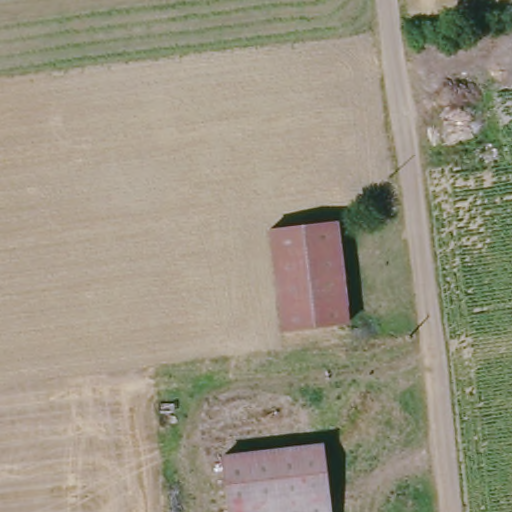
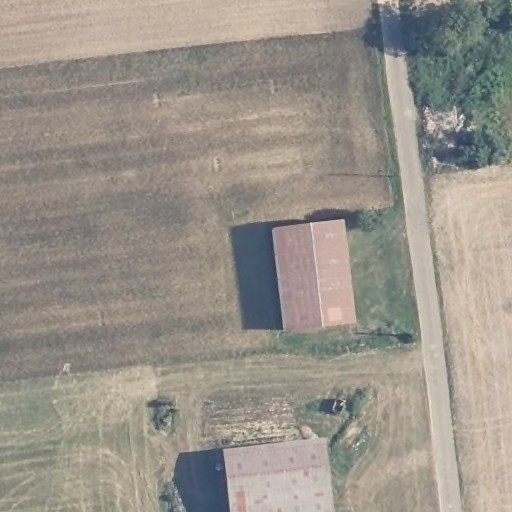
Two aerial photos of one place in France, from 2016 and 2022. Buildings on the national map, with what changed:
unchanged [(270,231),(336,225),(347,325),(282,331),(270,231)]
unchanged [(227,512),(220,457),(322,444),(329,512),(227,512)]

